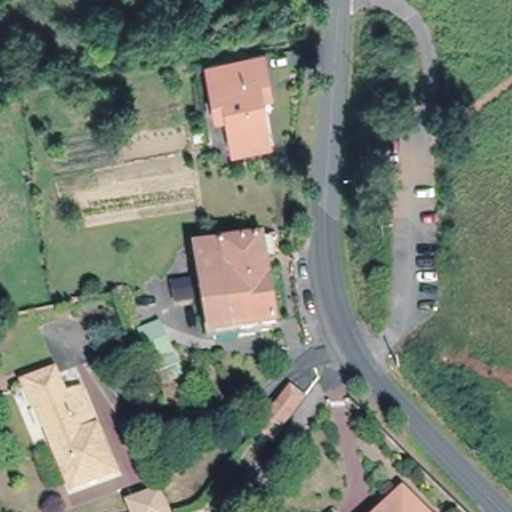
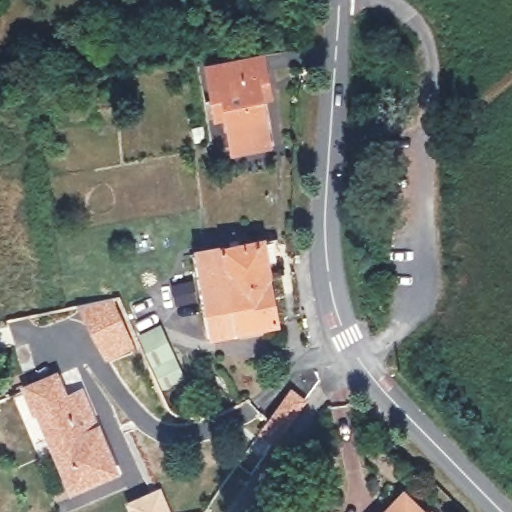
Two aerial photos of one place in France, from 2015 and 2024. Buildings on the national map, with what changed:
unchanged [(211,108),(205,75),(261,65),(267,98),(269,108),(260,110),(265,137),(229,144),(225,124),(214,126),(211,108)]
unchanged [(276,324),(273,325),(274,331),(239,336),(238,331),(214,335),(200,252),(262,242),(276,324)]
unchanged [(196,300),(177,304),(173,284),(193,281),(196,300)]
new [(104,363),(79,308),(111,293),(136,349),(104,363)]
unchanged [(184,376),(163,386),(140,335),(161,326),(184,376)]
unchanged [(110,483),(67,500),(34,421),(32,422),(22,398),(50,386),(59,408),(77,401),(94,442),(93,442),(100,459),(110,483)]
unchanged [(275,442),(261,432),(270,419),(280,405),(291,390),(305,400),(275,442)]
unchanged [(151,493),(158,512),(123,512),(121,506),(151,493)]
unchanged [(423,512),(386,512),(404,494),(423,512)]

